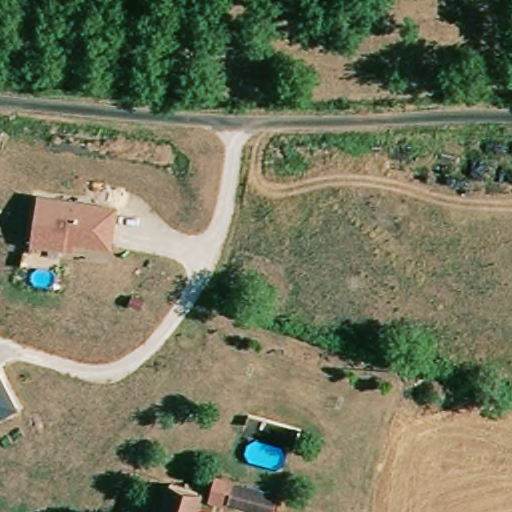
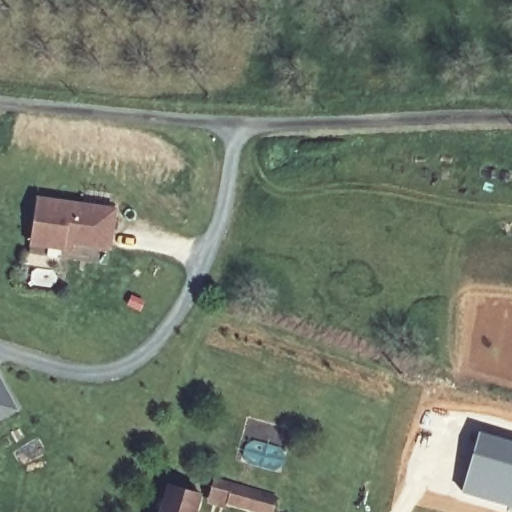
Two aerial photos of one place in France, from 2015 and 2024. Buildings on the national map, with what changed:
unchanged [(120,207),(114,250),(74,244),(72,251),(31,245),(37,195),(120,207)]
unchanged [(0,418),(0,373),(19,408),(0,418)]
new [(512,439),(512,507),(460,491),(478,428),(512,439)]
unchanged [(205,512),(167,512),(177,477),(212,487),(205,512)]
unchanged [(255,512),(216,500),(222,478),(235,482),(234,485),(277,498),(273,512),(255,512)]

